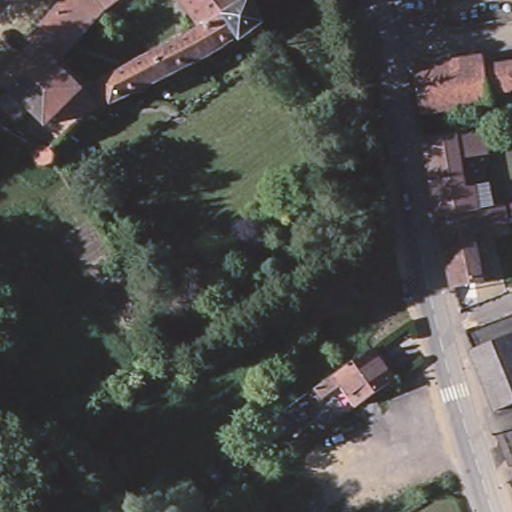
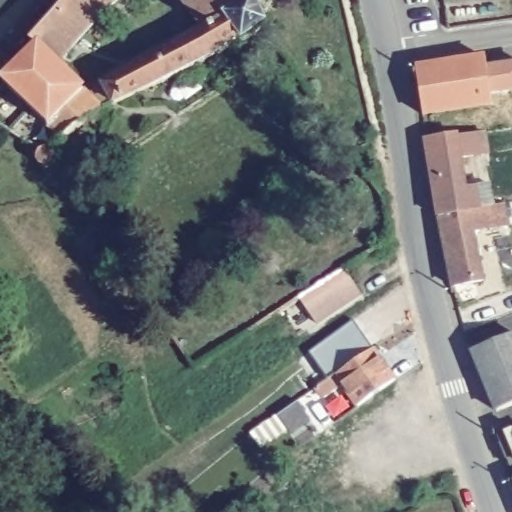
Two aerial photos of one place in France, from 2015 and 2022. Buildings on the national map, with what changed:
unchanged [(52,60),(29,36),(61,0),(110,0),(98,10),(52,60)]
unchanged [(97,80),(135,58),(198,24),(180,0),(251,0),(257,16),(252,29),(243,34),(238,36),(206,55),(110,101),(98,106),(86,112),(57,138),(43,123),(79,86),(82,89),(97,80)]
unchanged [(0,79),(0,74),(30,44),(29,36),(52,60),(79,86),(43,123),(0,79)]
unchanged [(415,63),(485,53),(487,64),(492,101),(421,110),(415,63)]
unchanged [(512,105),(493,108),(492,101),(487,64),(512,60),(512,87),(509,87),(512,105)]
unchanged [(425,139),(456,134),(456,136),(485,131),(487,151),(460,157),(465,189),(489,184),(493,205),(503,203),(508,225),(473,232),(477,255),(483,281),(451,287),(446,269),(438,217),(425,139)]
demolished [(343,272),(359,296),(315,325),(299,300),(343,272)]
unchanged [(482,389),(466,349),(509,333),(510,335),(512,334),(512,402),(491,411),(482,389)]
unchanged [(368,349),(390,381),(353,407),(338,385),(319,397),(312,388),(331,375),(368,349)]
unchanged [(298,401),(309,418),(289,432),(284,425),(277,416),(298,401)]
unchanged [(500,432),(512,427),(512,472),(509,465),(505,467),(502,458),(500,458),(493,435),(500,432)]
unchanged [(510,482),(512,480),(512,487),(510,482)]

